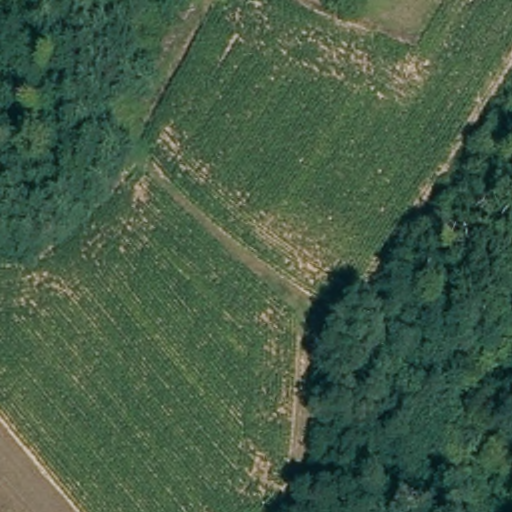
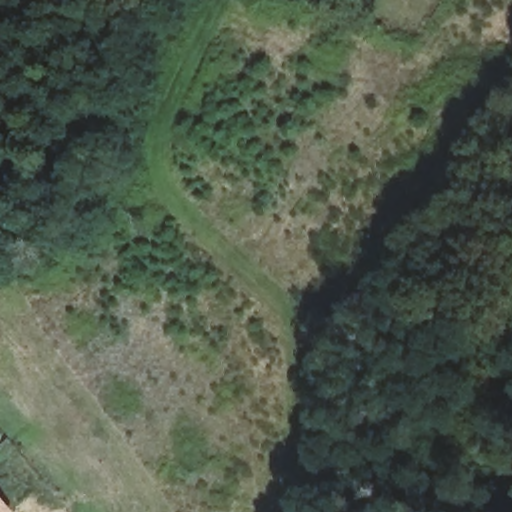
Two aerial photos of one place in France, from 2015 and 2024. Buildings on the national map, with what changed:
new [(12,509),(8,512),(0,512),(0,494),(12,509)]

